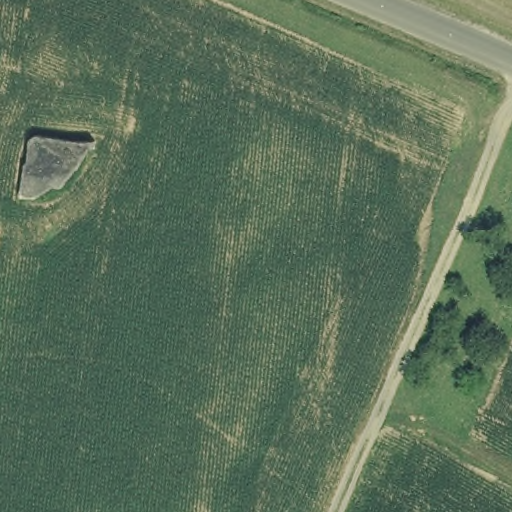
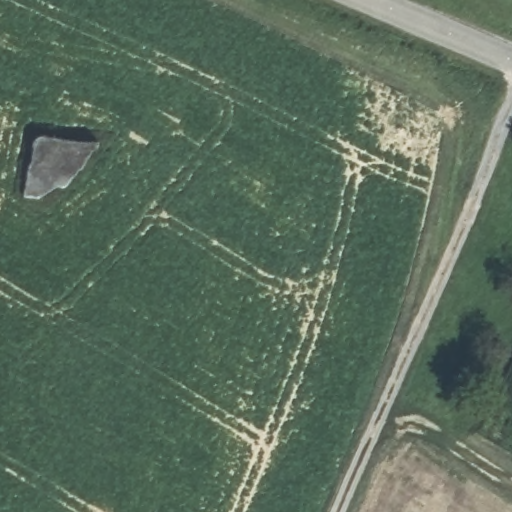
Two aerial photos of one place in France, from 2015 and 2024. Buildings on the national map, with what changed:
unchanged [(79,166),(61,187),(21,194),(33,137),(92,141),(79,166)]

